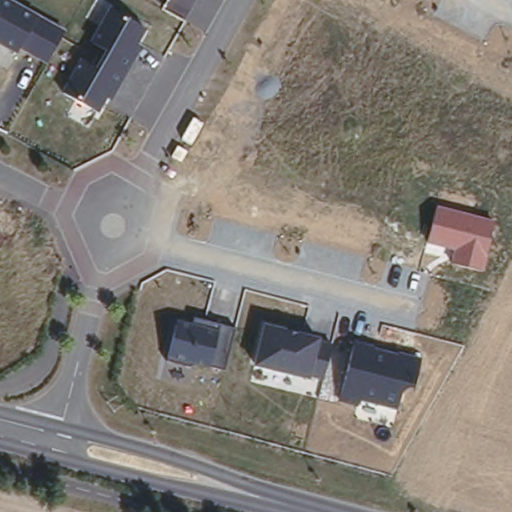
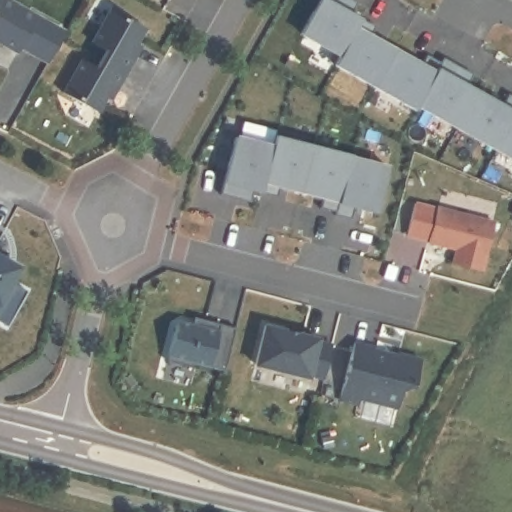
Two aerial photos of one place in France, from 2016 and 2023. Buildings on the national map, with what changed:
unchanged [(47,66),(0,40),(0,0),(11,0),(65,29),(47,66)]
new [(342,0),(365,12),(360,22),(440,62),(443,58),(512,95),(512,151),(423,101),(420,106),(333,59),(339,50),(302,31),(319,0),(342,0)]
unchanged [(109,8),(146,28),(138,44),(142,46),(113,101),(106,98),(98,112),(61,92),(109,8)]
new [(235,128),(277,137),(279,130),(391,159),(378,209),(266,180),(262,190),(222,181),(235,128)]
unchanged [(454,249),(403,236),(413,199),(494,216),(484,273),(451,264),(454,249)]
new [(11,281),(27,290),(7,326),(0,322),(0,255),(20,266),(11,281)]
unchanged [(192,363),(191,366),(165,360),(177,320),(191,323),(192,316),(236,328),(225,370),(192,363)]
unchanged [(253,366),(264,324),(333,341),(324,380),(253,366)]
unchanged [(352,343),(422,360),(415,388),(402,391),(399,408),(359,400),(358,405),(338,400),(352,343)]

